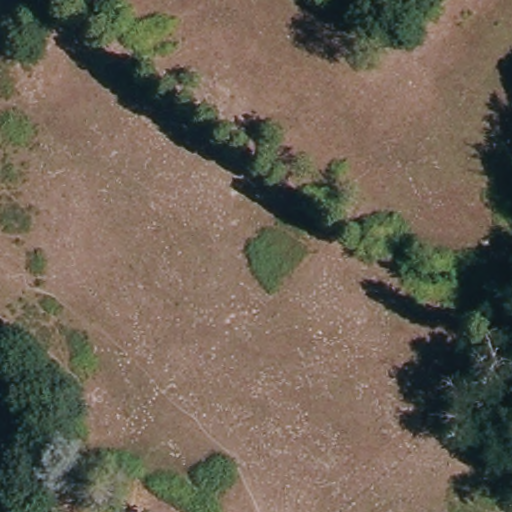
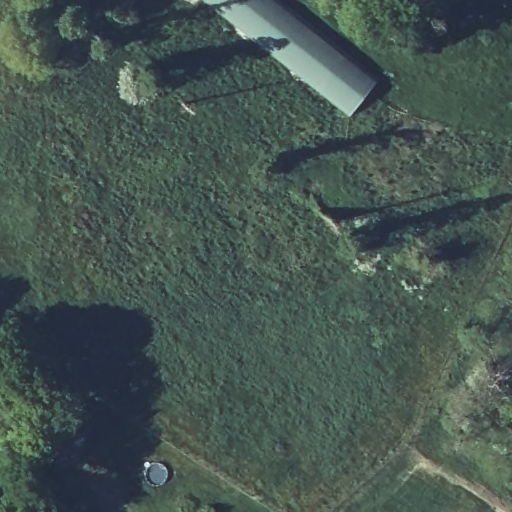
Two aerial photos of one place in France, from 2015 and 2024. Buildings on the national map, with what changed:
new [(351,116),(205,0),(281,0),(380,81),(351,116)]

